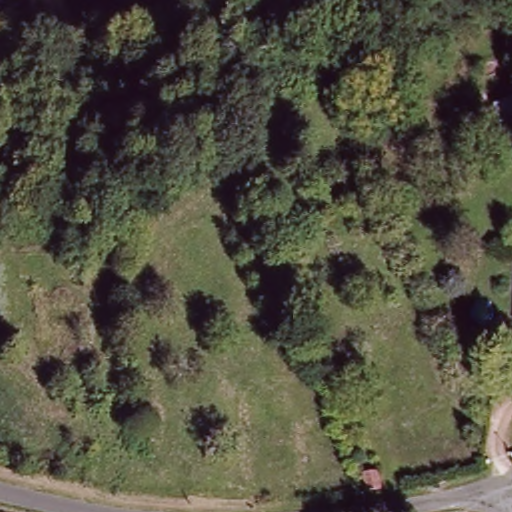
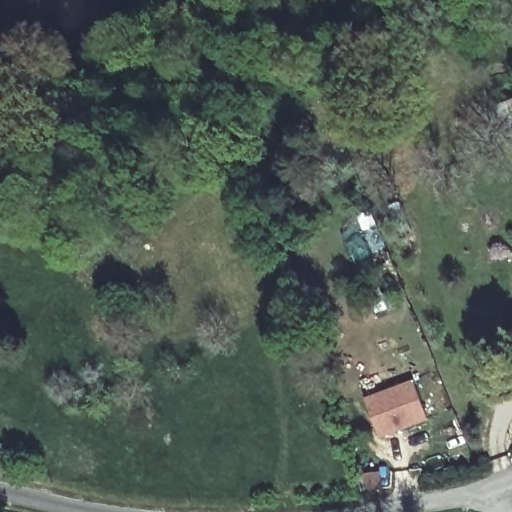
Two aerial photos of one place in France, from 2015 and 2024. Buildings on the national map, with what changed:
unchanged [(509,132),(497,100),(512,94),(512,131),(509,132)]
new [(381,440),(366,403),(413,383),(428,420),(381,440)]

